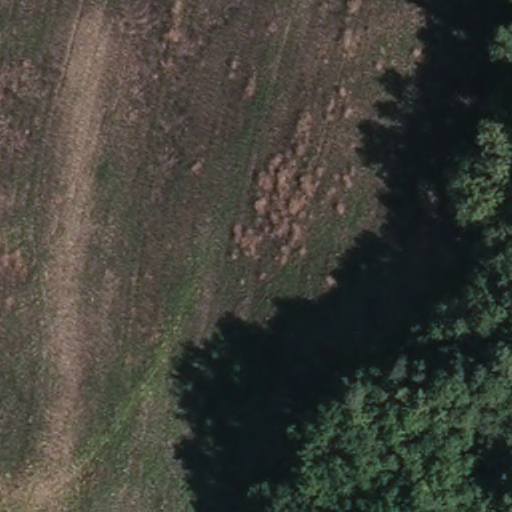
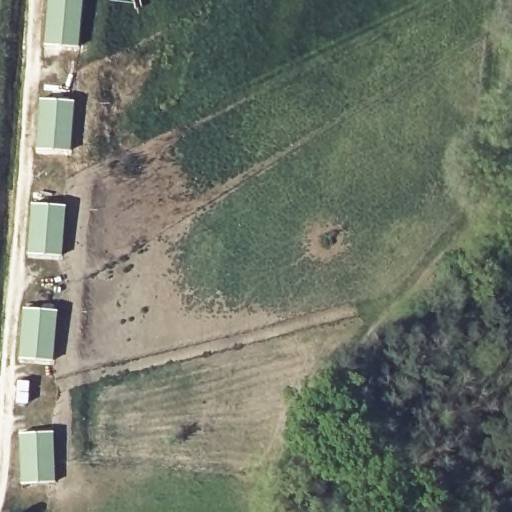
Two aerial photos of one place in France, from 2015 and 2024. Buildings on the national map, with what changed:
new [(47,45),(50,0),(83,0),(79,46),(47,45)]
new [(75,101),(71,151),(38,148),(42,99),(75,101)]
new [(67,206),(62,254),(30,252),(34,204),(67,206)]
new [(55,360),(21,357),(25,308),(58,311),(55,360)]
new [(55,432),(56,482),(23,484),(21,432),(55,432)]

